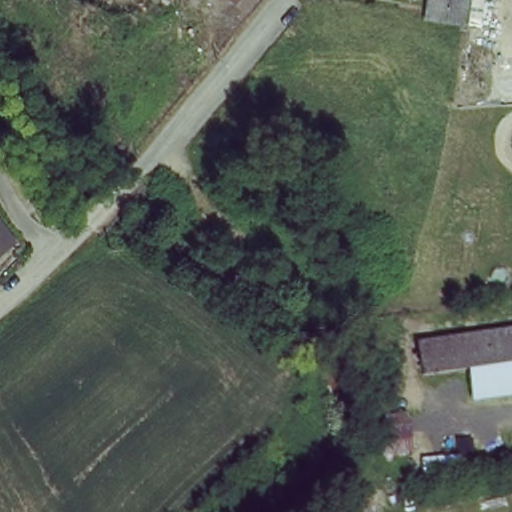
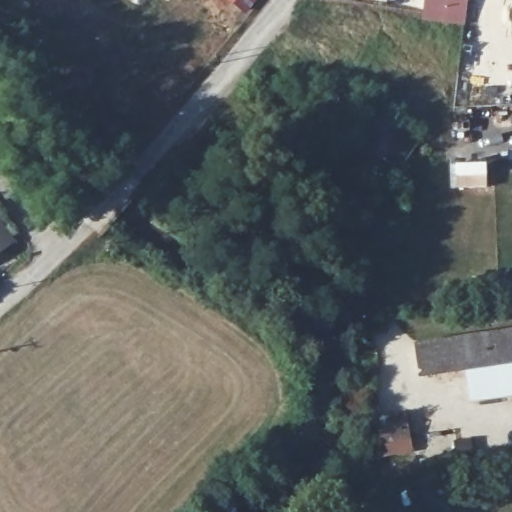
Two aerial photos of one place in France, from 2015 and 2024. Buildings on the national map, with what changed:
unchanged [(228,0),(249,0),(240,10),(228,0)]
unchanged [(424,0),(468,0),(465,25),(423,18),(423,12),(424,0)]
unchanged [(17,239),(0,252),(0,217),(17,239)]
unchanged [(470,372),(421,379),(415,346),(512,333),(512,397),(475,402),(470,372)]
unchanged [(377,417),(409,411),(416,453),(385,459),(377,417)]

